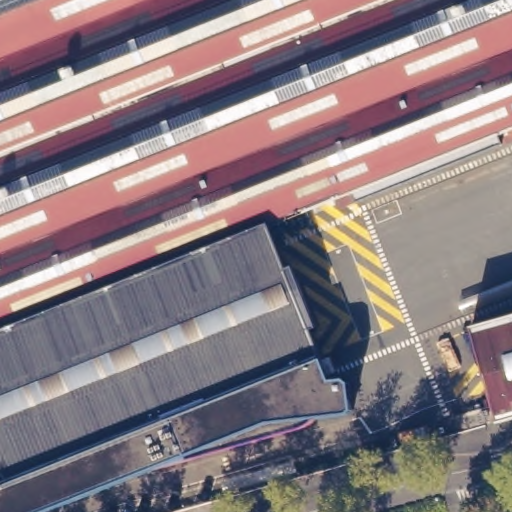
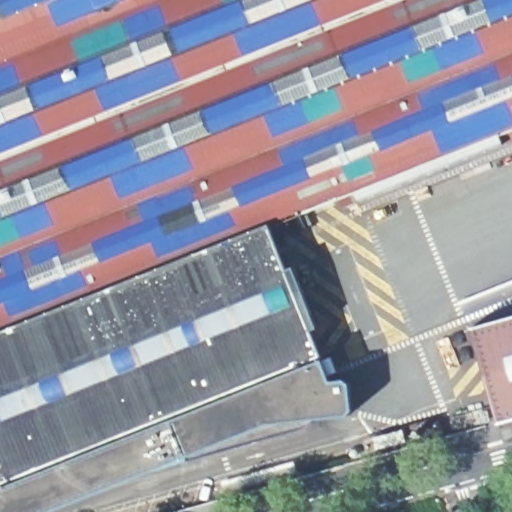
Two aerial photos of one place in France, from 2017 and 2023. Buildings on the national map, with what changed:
unchanged [(352,187),(269,219),(288,267),(311,325),(332,376),(345,374),(351,378),(354,406),(350,411),(316,415),(263,422),(49,512),(3,512),(0,505),(0,0),(512,0),(512,137),(357,199),(352,187)]
unchanged [(472,324),(512,313),(512,415),(499,419),(498,418),(472,324)]

